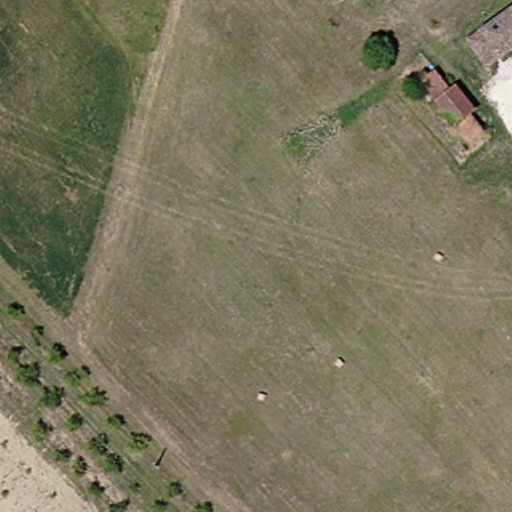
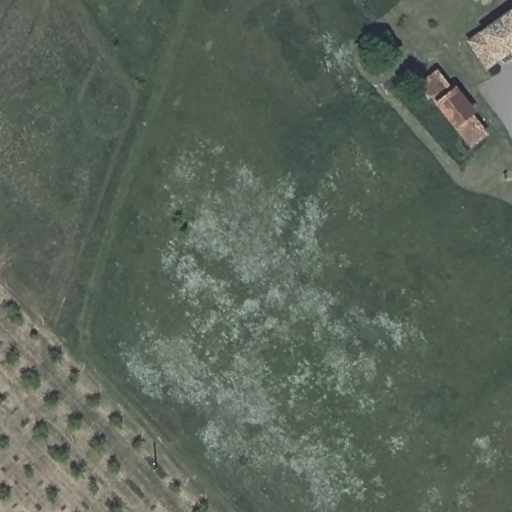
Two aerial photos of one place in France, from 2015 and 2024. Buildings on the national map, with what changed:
unchanged [(512,55),(497,63),(480,31),(512,12),(512,55)]
unchanged [(422,80),(438,65),(493,126),(477,140),(422,80)]

